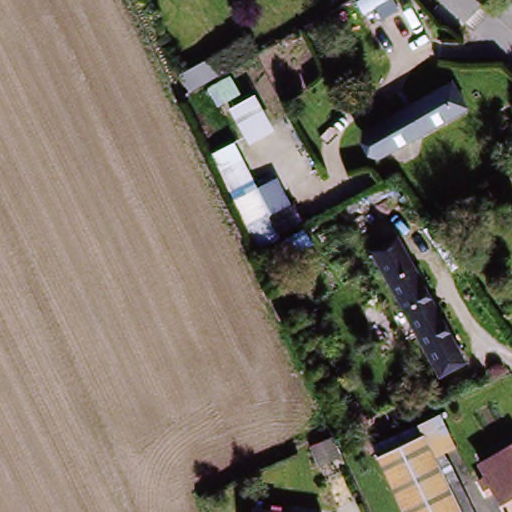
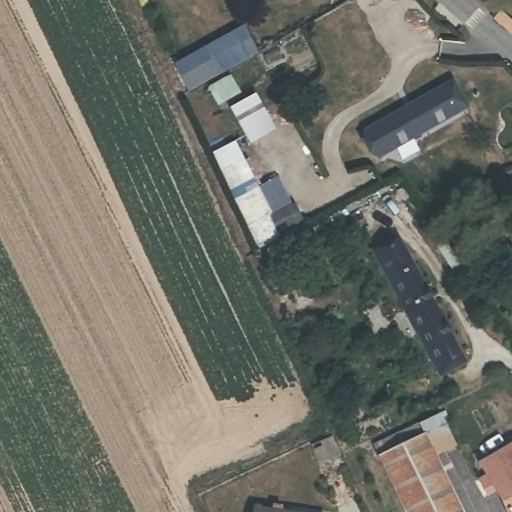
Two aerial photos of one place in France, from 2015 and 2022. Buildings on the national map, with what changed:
unchanged [(191,91),(180,70),(243,39),(253,60),(191,91)]
unchanged [(468,109),(389,157),(376,135),(455,87),(468,109)]
unchanged [(257,244),(220,168),(245,158),(260,187),(284,177),(305,222),(257,244)]
unchanged [(466,366),(440,380),(374,258),(400,244),(466,366)]
unchanged [(440,413),(458,451),(445,457),(433,463),(457,512),(405,512),(373,445),(440,413)]
unchanged [(497,477),(491,464),(512,455),(512,510),(504,492),(495,498),(486,482),(497,477)]
unchanged [(457,512),(433,463),(445,457),(472,512),(457,512)]
unchanged [(277,509),(278,503),(285,505),(283,511),(287,512),(256,512),(258,505),(277,509)]

